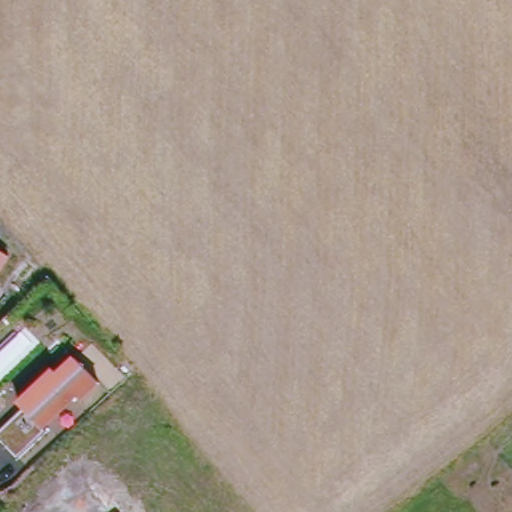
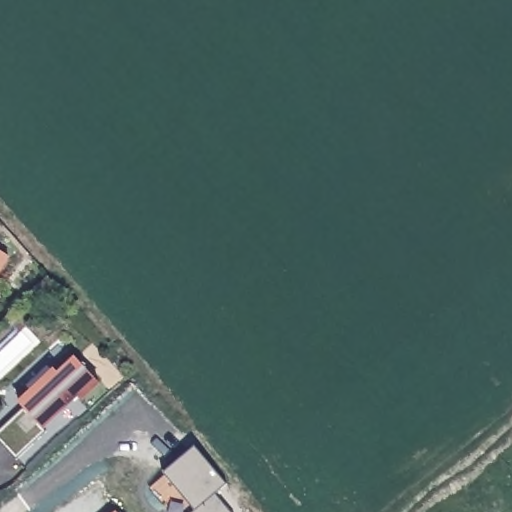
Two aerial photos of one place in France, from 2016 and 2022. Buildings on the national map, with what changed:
unchanged [(0,278),(0,252),(11,257),(0,278)]
unchanged [(82,402),(77,398),(43,428),(47,433),(17,460),(0,440),(0,435),(25,411),(19,403),(55,370),(60,373),(77,357),(100,383),(82,402)]
new [(195,511),(165,473),(195,447),(226,482),(215,492),(231,512),(193,512),(195,511)]

